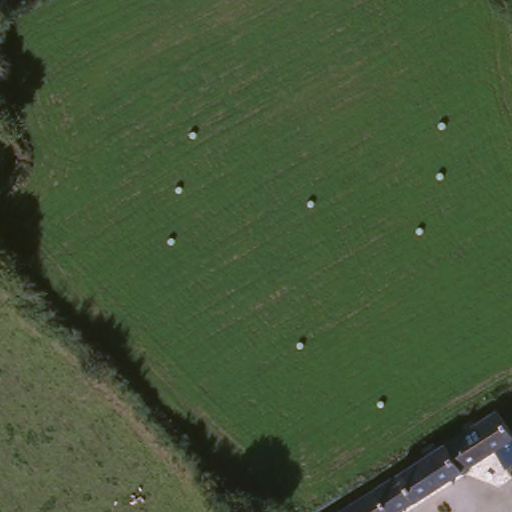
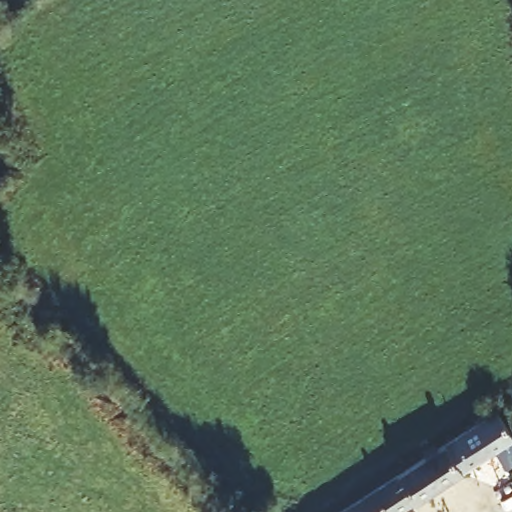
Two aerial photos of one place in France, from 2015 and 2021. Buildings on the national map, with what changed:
unchanged [(421,458),(484,413),(502,437),(497,441),(393,512),(342,512),(421,458)]

